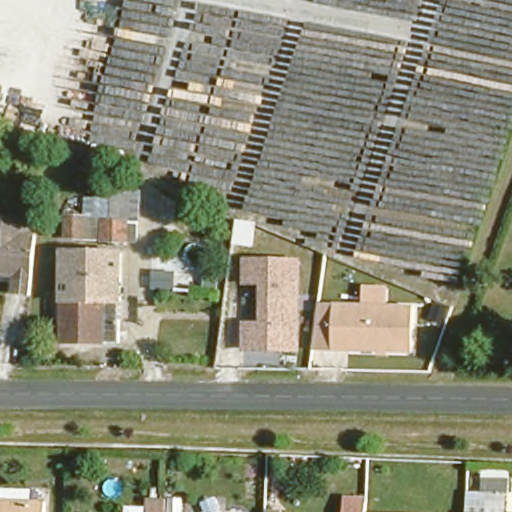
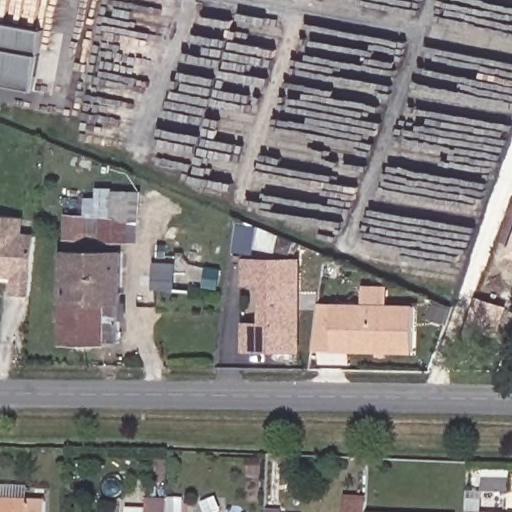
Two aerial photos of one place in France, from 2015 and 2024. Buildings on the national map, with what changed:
new [(33,91),(0,85),(0,23),(43,30),(37,55),(33,91)]
unchanged [(69,234),(69,213),(84,214),(84,198),(141,195),(140,215),(140,249),(122,249),(94,247),(93,234),(69,234)]
unchanged [(17,231),(32,234),(31,240),(23,292),(5,290),(9,266),(4,266),(3,271),(0,271),(0,211),(20,214),(17,231)]
unchanged [(58,337),(64,250),(124,252),(117,340),(58,337)]
unchanged [(241,352),(242,256),(303,257),(301,353),(241,352)]
unchanged [(314,352),(316,302),(417,305),(414,355),(314,352)]
unchanged [(481,461),(505,461),(505,475),(481,475),(481,461)]
unchanged [(43,512),(0,512),(0,495),(43,496),(43,512)]
unchanged [(361,496),(361,510),(436,512),(340,512),(340,495),(361,496)]
unchanged [(512,510),(512,512),(464,512),(464,509),(512,510)]

